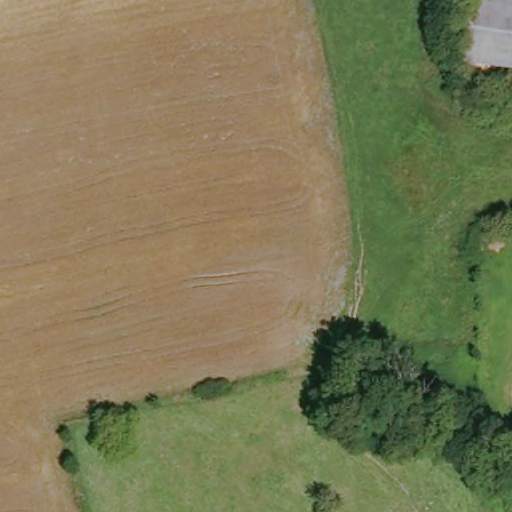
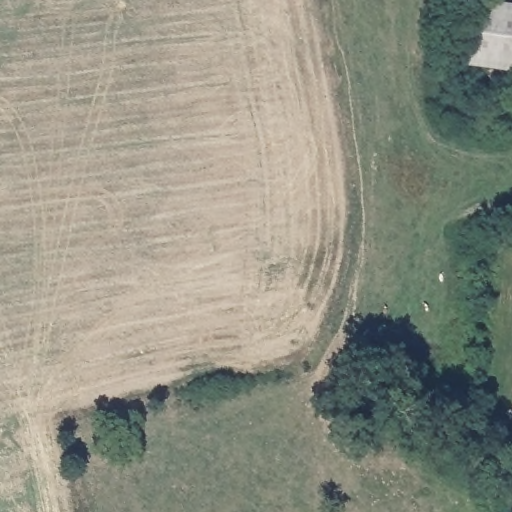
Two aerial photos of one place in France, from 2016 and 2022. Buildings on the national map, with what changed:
unchanged [(460,64),(464,3),(512,5),(512,67),(460,64)]

